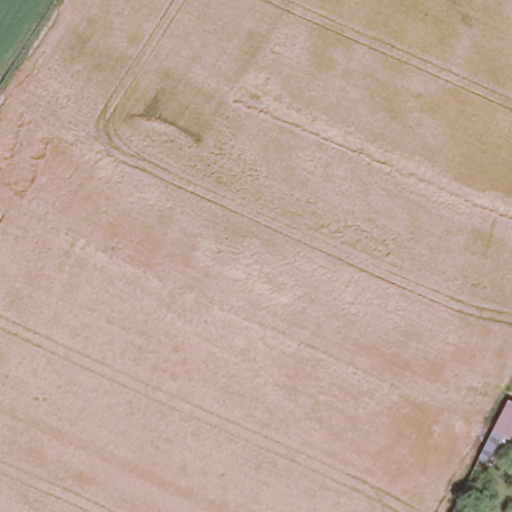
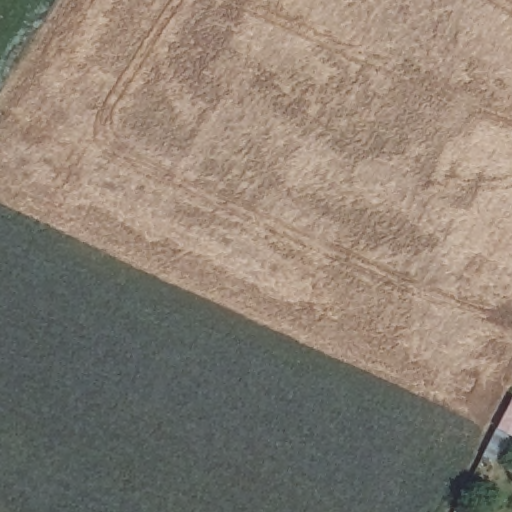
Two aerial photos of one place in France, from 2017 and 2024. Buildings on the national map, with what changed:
unchanged [(507,400),(512,402),(512,437),(510,440),(502,436),(487,463),(479,460),(507,400)]

